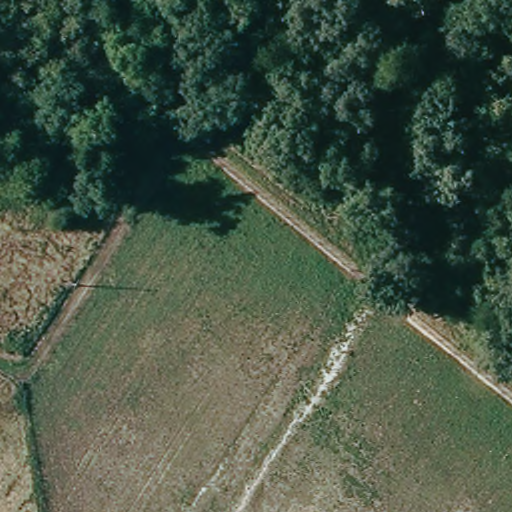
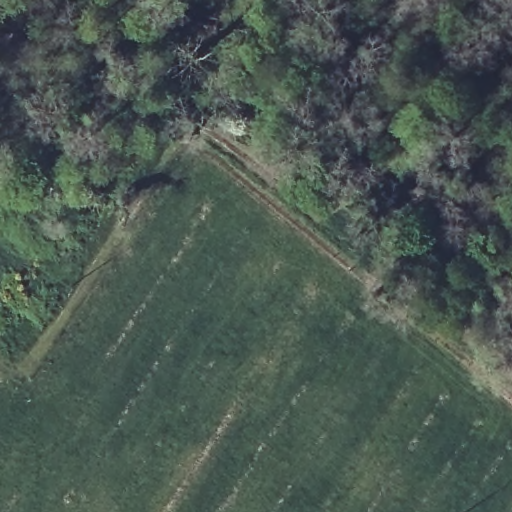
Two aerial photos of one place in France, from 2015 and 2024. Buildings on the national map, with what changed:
[]

